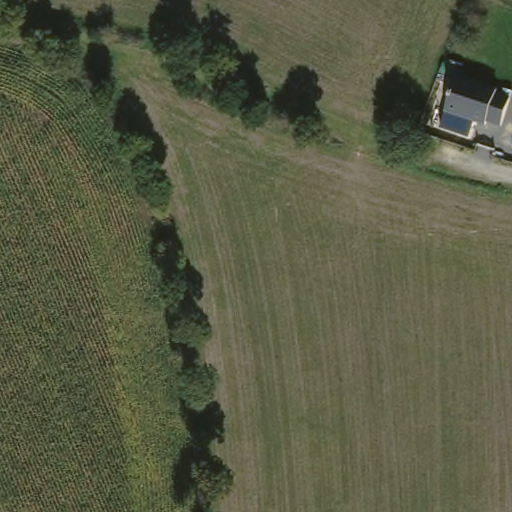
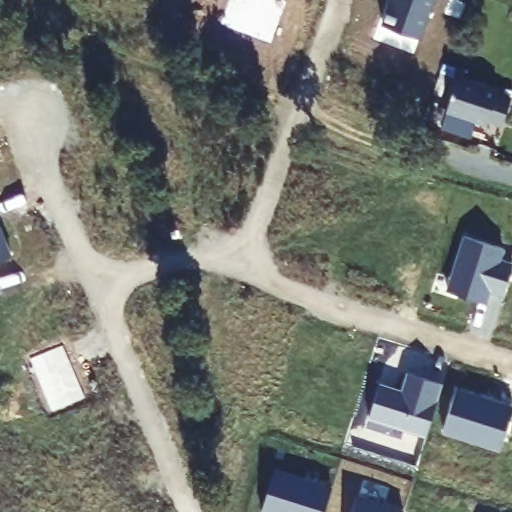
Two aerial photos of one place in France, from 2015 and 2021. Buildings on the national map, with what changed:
new [(394,0),(435,0),(421,39),(385,26),(394,0)]
unchanged [(451,107),(458,90),(465,72),(504,89),(503,92),(512,96),(512,108),(505,126),(491,120),(490,123),(458,110),(451,107)]
new [(0,260),(0,234),(10,256),(0,260)]
new [(465,237),(503,250),(499,261),(512,266),(512,269),(504,297),(489,292),(485,304),(447,292),(465,237)]
new [(380,386),(402,393),(407,375),(442,386),(425,438),(368,420),(380,386)]
new [(457,392),(512,410),(512,415),(500,452),(443,434),(457,392)]
new [(331,490),(324,512),(261,512),(274,472),(331,490)]
new [(399,512),(353,512),(358,498),(399,512)]

